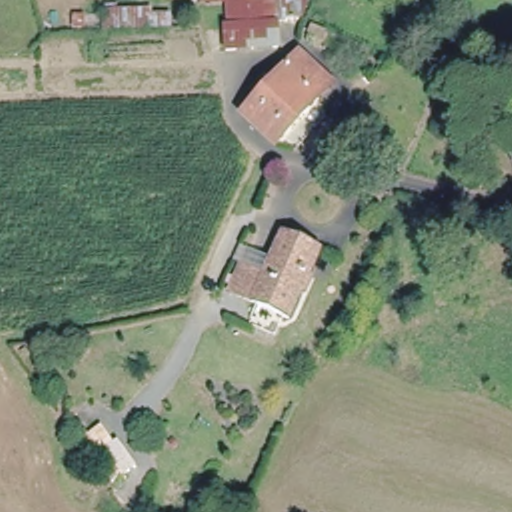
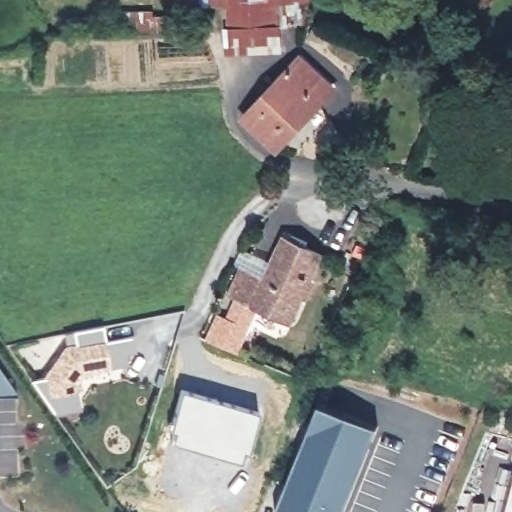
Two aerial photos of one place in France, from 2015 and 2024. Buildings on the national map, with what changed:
unchanged [(193,1),(190,0),(229,0),(229,3),(194,8),(193,1)]
unchanged [(288,21),(284,49),(225,52),(222,24),(230,24),(229,3),(229,0),(310,0),(304,24),(288,21)]
unchanged [(282,148),(247,121),(299,59),(336,90),(282,148)]
unchanged [(284,316),(229,291),(241,267),(267,278),(285,238),(315,251),(284,316)]
new [(47,376),(68,347),(77,345),(74,332),(104,325),(106,340),(131,335),(134,348),(124,351),(126,361),(91,368),(84,379),(89,403),(55,410),(34,378),(47,376)]
new [(0,393),(0,364),(19,392),(0,393)]
new [(173,431),(170,430),(181,391),(258,412),(240,462),(170,442),(173,431)]
new [(318,403),(377,426),(342,512),(274,512),(318,403)]
demolished [(141,465),(115,482),(79,438),(103,424),(141,465)]
new [(512,498),(512,512),(508,512),(512,498)]

